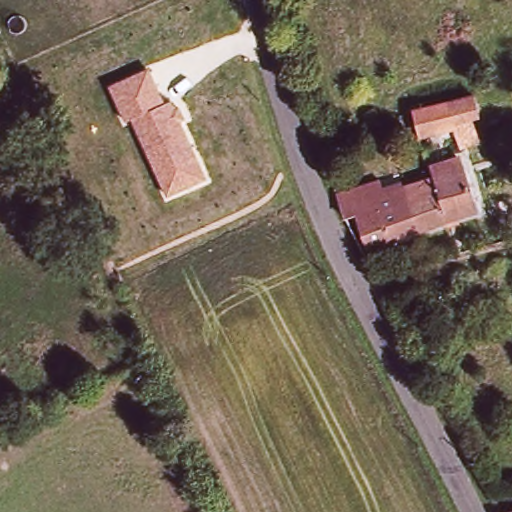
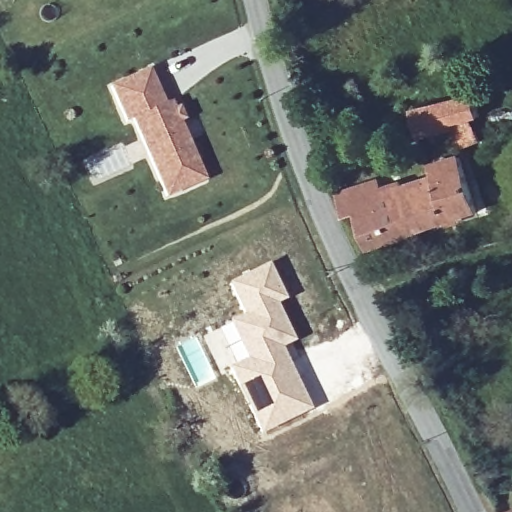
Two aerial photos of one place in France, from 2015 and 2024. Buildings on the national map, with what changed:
unchanged [(124,123),(107,87),(150,66),(167,102),(171,100),(174,108),(181,105),(188,120),(181,123),(207,179),(166,197),(132,120),(124,123)]
unchanged [(477,98),(483,121),(419,140),(412,117),(477,98)]
unchanged [(463,151),(459,141),(482,134),(485,144),(463,151)]
unchanged [(423,182),(438,177),(435,167),(461,160),(479,211),(418,232),(403,188),(423,182)]
unchanged [(329,195),(382,180),(388,193),(403,188),(418,232),(370,248),(354,213),(339,218),(329,195)]
new [(240,314),(226,283),(267,262),(286,300),(277,305),(296,340),(282,348),(311,408),(262,434),(227,368),(221,371),(203,335),(240,314)]

